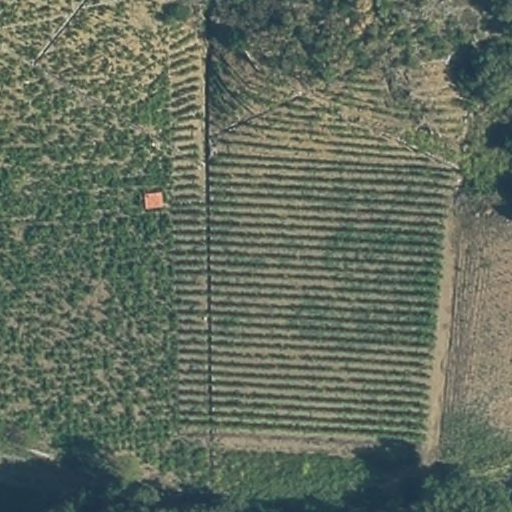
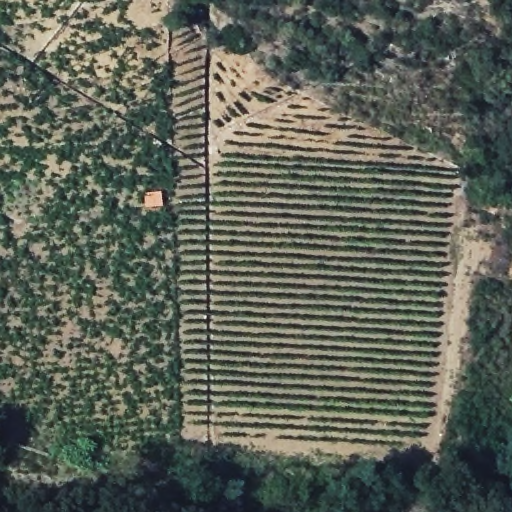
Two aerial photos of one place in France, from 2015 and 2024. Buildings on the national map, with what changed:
unchanged [(168,208),(148,209),(147,196),(166,195),(168,208)]

